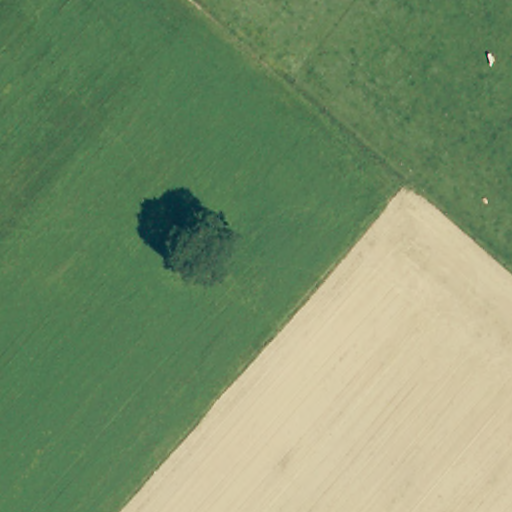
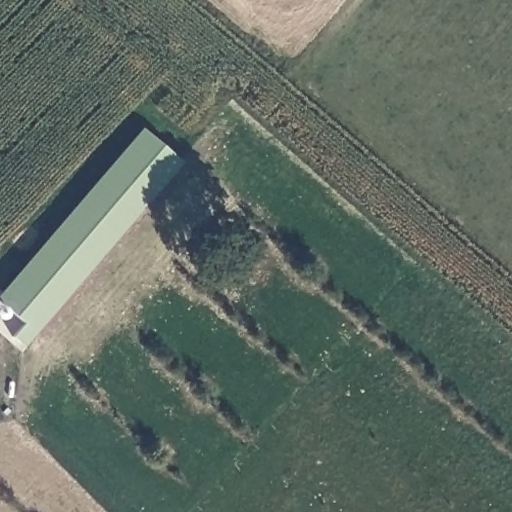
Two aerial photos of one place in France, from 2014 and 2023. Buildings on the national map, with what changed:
new [(21,347),(8,336),(21,322),(0,305),(0,290),(139,126),(182,162),(21,347)]

